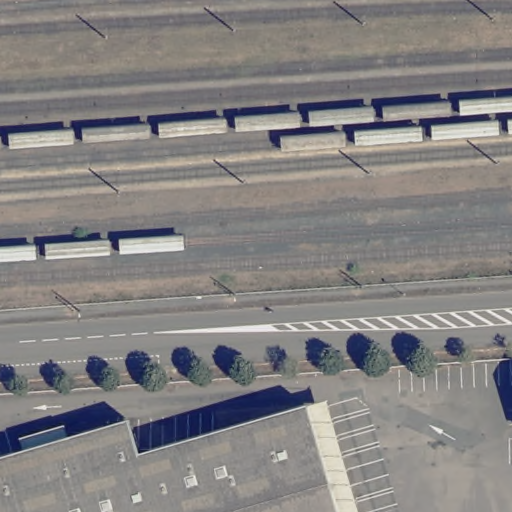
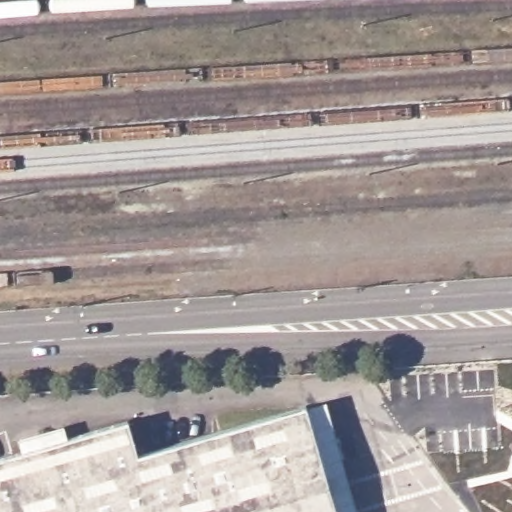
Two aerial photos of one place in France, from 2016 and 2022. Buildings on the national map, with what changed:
unchanged [(325,400),(358,512),(337,512),(306,407),(325,400)]
unchanged [(0,512),(0,463),(129,424),(139,457),(306,407),(337,512),(0,512)]

